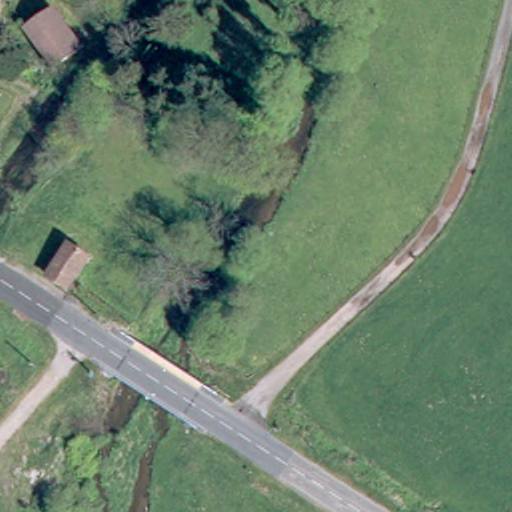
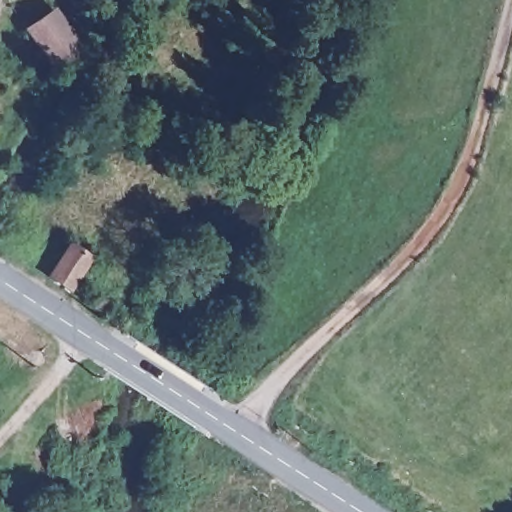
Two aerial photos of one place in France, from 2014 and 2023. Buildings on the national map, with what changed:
unchanged [(26,30),(53,9),(83,45),(57,66),(26,30)]
unchanged [(52,277),(73,247),(82,255),(90,260),(68,292),(49,280),(52,277)]

